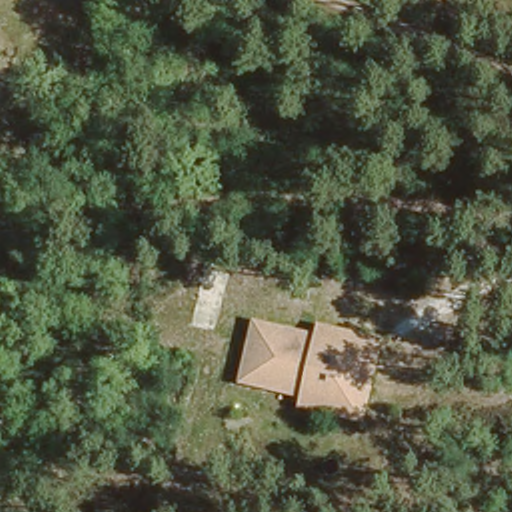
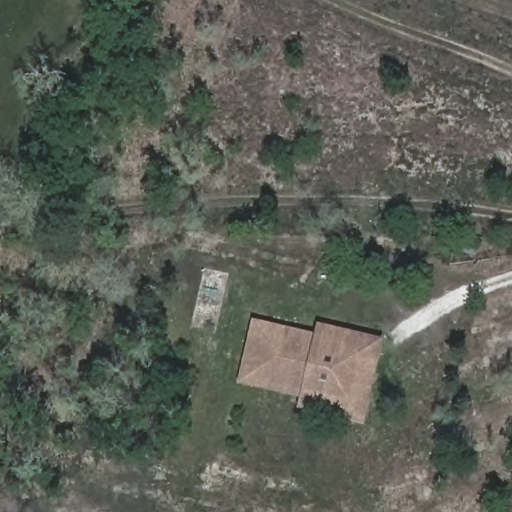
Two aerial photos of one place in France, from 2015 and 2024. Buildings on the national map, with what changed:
unchanged [(252,322),(313,333),(316,324),(381,339),(365,425),(298,408),(300,398),(236,383),(252,322)]

